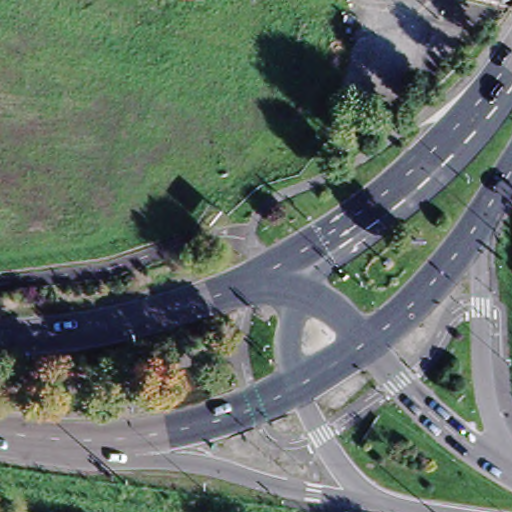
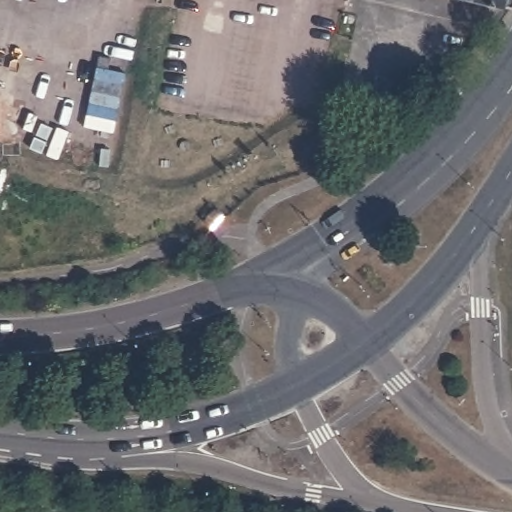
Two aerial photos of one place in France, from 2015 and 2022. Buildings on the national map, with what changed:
unchanged [(456,0),(509,0),(507,5),(502,8),(500,6),(498,10),(470,4),(456,0)]

